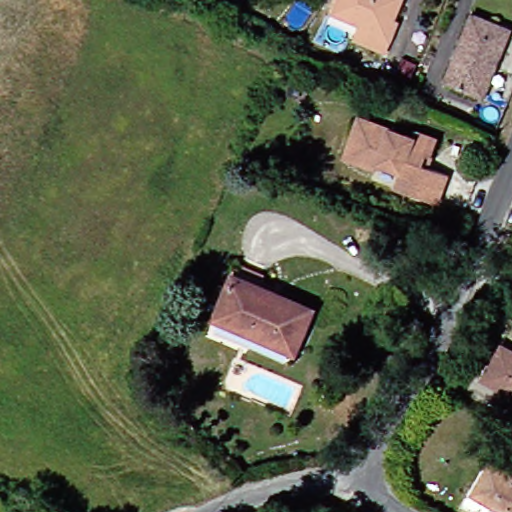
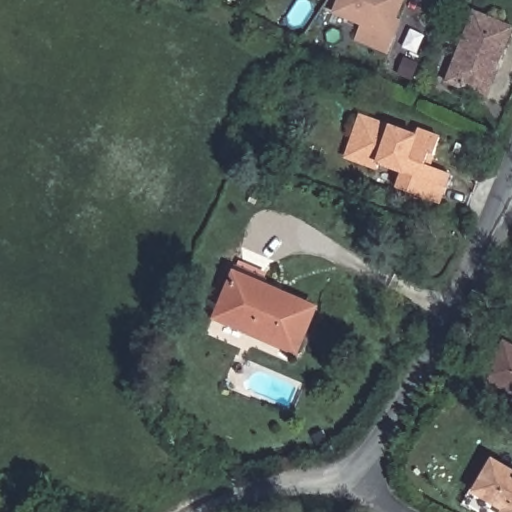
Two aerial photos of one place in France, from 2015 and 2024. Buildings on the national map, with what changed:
unchanged [(396,37),(390,53),(360,41),(365,26),(337,14),(342,0),(407,0),(393,35),(396,37)]
unchanged [(486,99),(446,82),(474,13),(512,30),(512,33),(486,99)]
unchanged [(443,140),(437,157),(433,168),(453,175),(443,206),(401,191),(406,175),(382,166),(381,172),(350,161),(365,119),(420,138),(421,132),(443,140)]
unchanged [(300,345),(222,312),(240,271),(317,305),(300,345)]
unchanged [(512,348),(512,393),(485,377),(504,343),(512,348)]
unchanged [(503,510),(475,491),(493,460),(512,472),(512,512),(503,512),(503,510)]

